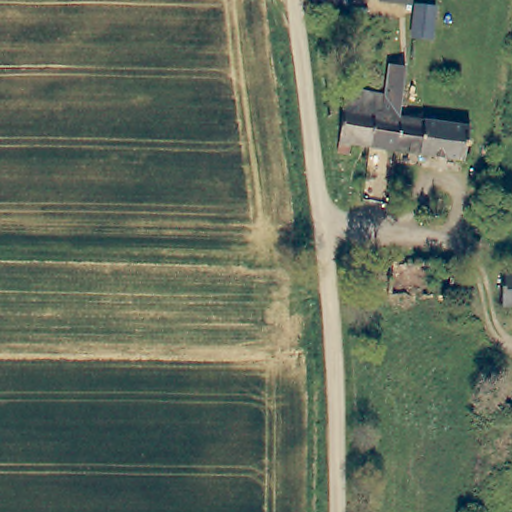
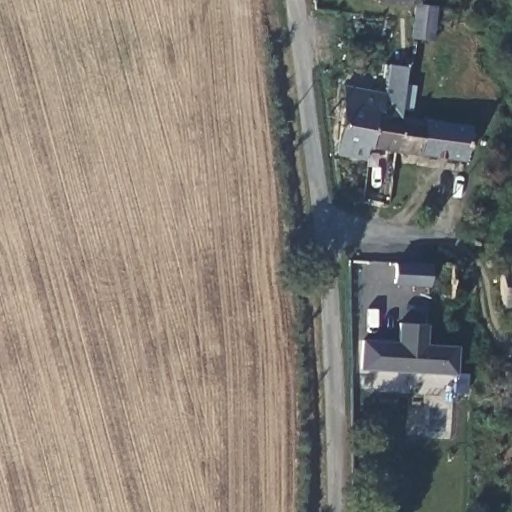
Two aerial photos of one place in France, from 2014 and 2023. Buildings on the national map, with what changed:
unchanged [(416,3),(383,0),(416,0),(416,3)]
unchanged [(438,8),(435,39),(415,37),(418,6),(438,8)]
unchanged [(420,154),(398,151),(372,147),(352,143),(350,154),(340,152),(349,91),(389,97),(392,65),(409,67),(405,100),(404,117),(425,121),(440,123),(455,126),(470,128),(466,161),(450,159),(435,156),(420,154)]
unchanged [(512,269),(512,303),(505,304),(501,271),(512,269)]
new [(358,370),(360,340),(397,342),(397,322),(426,325),(425,345),(457,347),(455,375),(358,370)]

